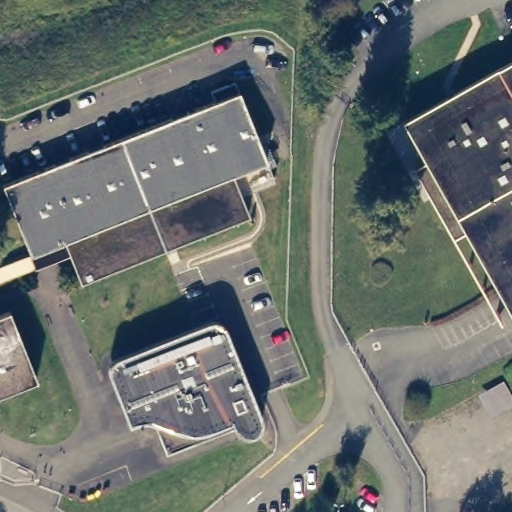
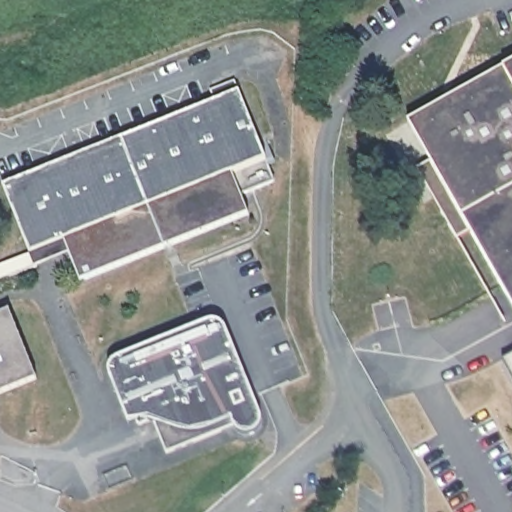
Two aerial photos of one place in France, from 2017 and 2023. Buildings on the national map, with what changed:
unchanged [(456,239),(416,169),(430,161),(407,121),(512,62),(512,306),(506,295),(470,231),(456,239)]
unchanged [(63,240),(30,253),(2,185),(213,100),(210,90),(235,80),(265,159),(232,172),(248,213),(80,281),(63,240)]
unchanged [(9,309),(36,378),(0,393),(0,313),(9,309)]
unchanged [(108,372),(108,370),(108,367),(108,364),(110,361),(112,359),(115,357),(207,320),(211,319),(215,319),(217,320),(220,322),(223,324),(225,327),(231,344),(260,416),(261,420),(260,422),(260,425),(258,428),(255,432),(251,434),(247,435),(242,434),(240,433),(237,432),(235,430),(233,426),(230,419),(220,423),(221,426),(221,427),(221,428),(221,429),(221,430),(221,431),(220,431),(219,432),(165,453),(155,427),(160,425),(156,418),(141,424),(140,424),(138,424),(137,423),(136,423),(136,422),(128,425),(109,375),(108,372)]

